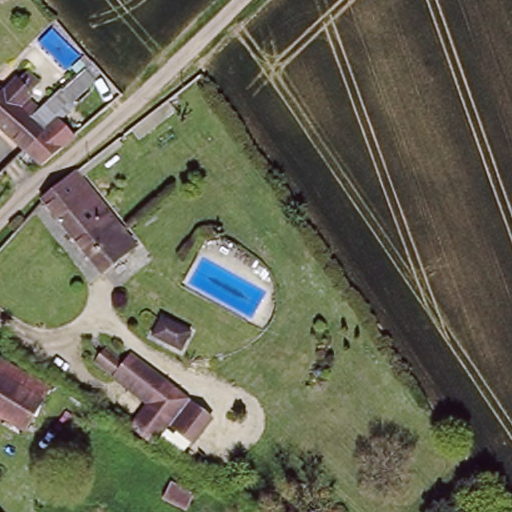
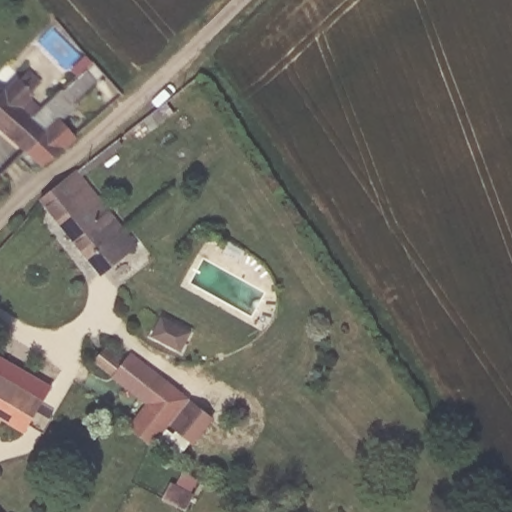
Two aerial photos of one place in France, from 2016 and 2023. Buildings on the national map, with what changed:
unchanged [(46,79),(38,86),(27,74),(35,66),(46,79)]
unchanged [(102,76),(63,114),(54,104),(93,66),(102,76)]
unchanged [(20,74),(36,93),(33,96),(45,109),(37,116),(50,128),(26,150),(0,125),(0,92),(3,89),(5,89),(20,74)]
unchanged [(63,114),(78,131),(42,165),(26,150),(50,128),(37,116),(45,109),(57,121),(63,114)]
unchanged [(72,174),(96,202),(65,229),(41,202),(72,174)]
unchanged [(105,273),(96,264),(65,229),(96,202),(125,233),(135,244),(105,273)]
unchanged [(160,311),(191,328),(181,349),(150,333),(160,311)]
unchanged [(212,414),(190,440),(168,423),(149,443),(128,425),(146,406),(120,382),(98,362),(104,355),(111,362),(119,353),(125,359),(133,349),(212,414)]
unchanged [(46,399),(30,428),(0,407),(0,367),(46,399)]
unchanged [(172,478),(197,492),(186,510),(161,497),(172,478)]

